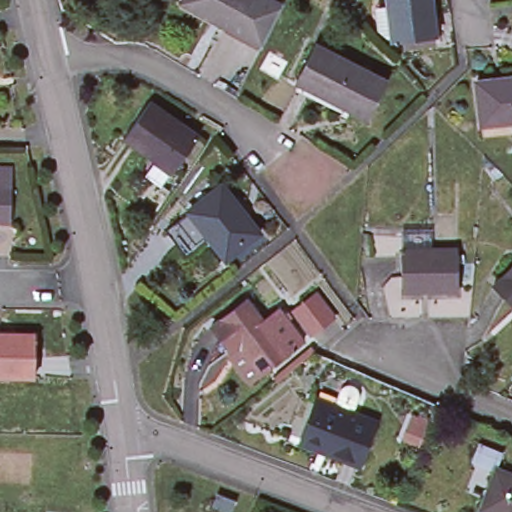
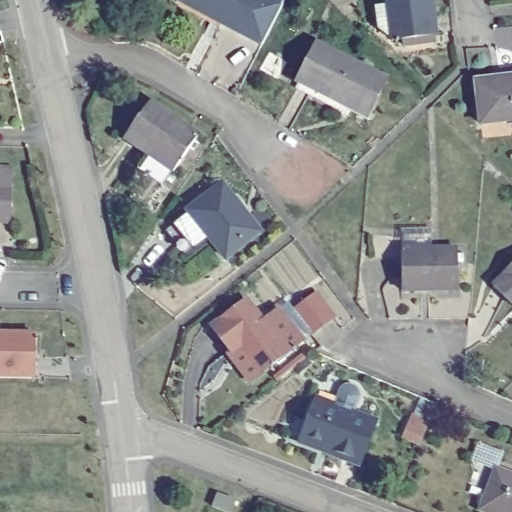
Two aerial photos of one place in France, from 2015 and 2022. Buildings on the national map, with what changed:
unchanged [(211,19),(212,16),(184,0),(270,0),(273,1),(252,41),(236,33),(211,19)]
unchanged [(431,36),(389,41),(384,0),(426,0),(431,36)]
unchanged [(312,42),(383,79),(363,118),(292,81),(312,42)]
unchanged [(474,80),(512,76),(512,119),(478,123),(474,80)]
unchanged [(195,138),(171,173),(122,139),(148,101),(175,119),(172,122),(195,138)]
unchanged [(6,217),(0,217),(0,178),(8,178),(6,217)]
unchanged [(220,185),(256,234),(224,260),(186,212),(220,185)]
unchanged [(401,250),(455,248),(456,290),(401,291),(401,250)]
unchanged [(490,284),(512,262),(512,305),(490,284)]
unchanged [(292,311),(315,294),(333,318),(310,335),(292,311)]
unchanged [(276,310),(301,341),(249,384),(226,357),(228,355),(208,330),(243,302),(260,323),(276,310)]
unchanged [(0,372),(0,330),(35,330),(35,364),(35,372),(0,372)]
unchanged [(300,439),(315,400),(332,407),(338,389),(342,386),(348,385),(353,387),(356,391),(356,396),(350,414),(372,422),(356,465),(325,453),(326,449),(300,439)]
unchanged [(494,469),(512,476),(512,512),(488,512),(479,508),(494,469)]
unchanged [(215,484),(232,490),(228,504),(210,498),(215,484)]

